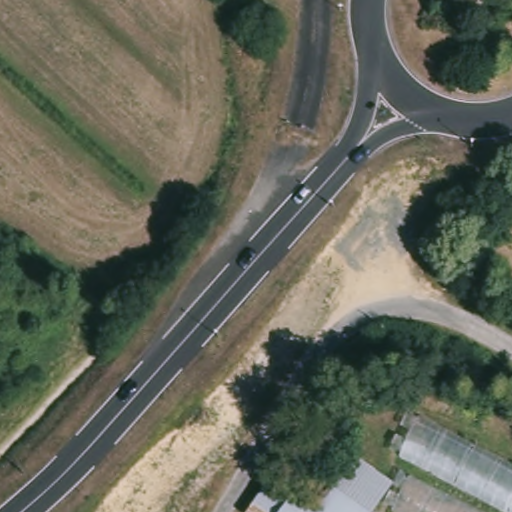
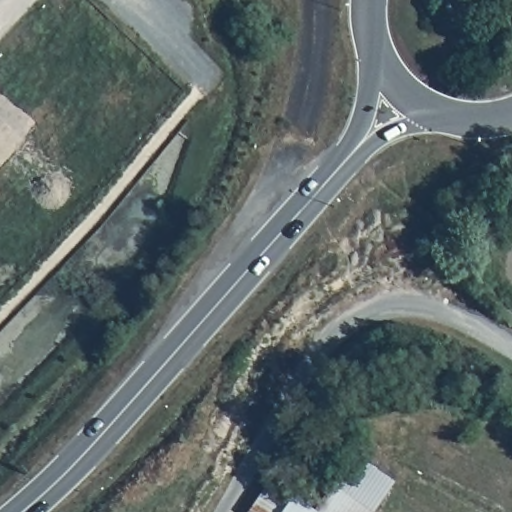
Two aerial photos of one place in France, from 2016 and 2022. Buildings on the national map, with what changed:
unchanged [(512,407),(512,416),(508,413),(512,407)]
demolished [(512,512),(496,512),(395,459),(416,417),(512,468),(512,512)]
unchanged [(332,493),(353,462),(391,489),(375,512),(359,512),(332,493)]
demolished [(411,480),(471,512),(392,512),(411,480)]
unchanged [(267,489),(290,504),(301,512),(252,512),(267,489)]
unchanged [(330,492),(332,493),(359,512),(316,512),(330,492)]

